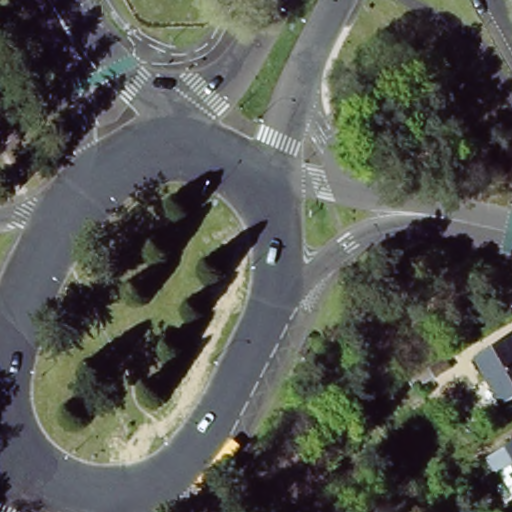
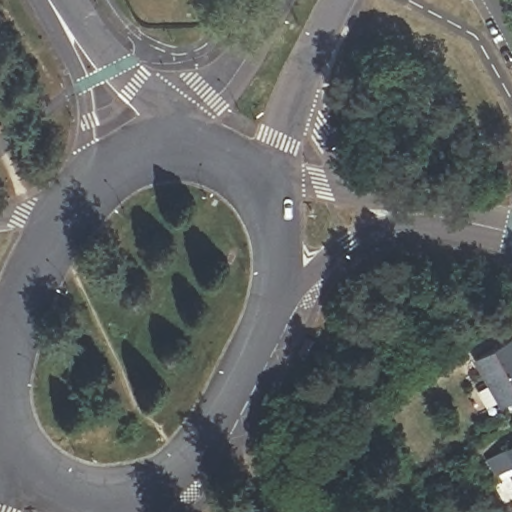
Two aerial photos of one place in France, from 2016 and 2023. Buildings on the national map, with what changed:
unchanged [(512,354),(512,396),(497,404),(470,357),(503,339),(512,354)]
unchanged [(512,465),(495,473),(487,459),(512,445),(512,465)]

